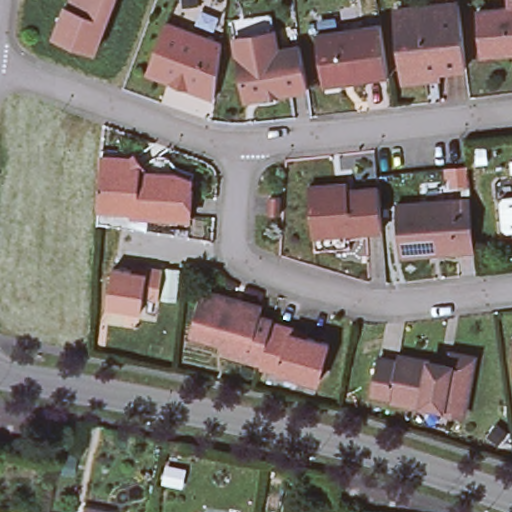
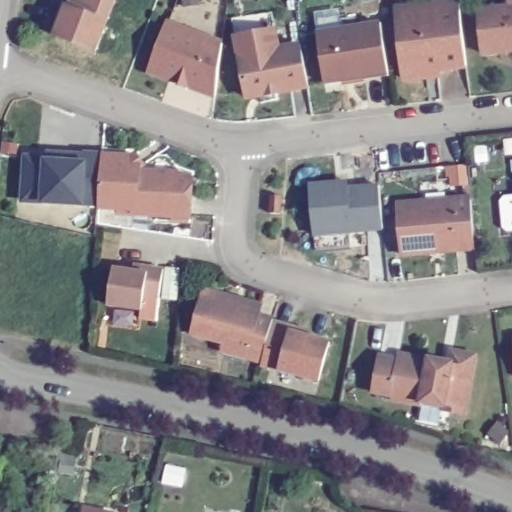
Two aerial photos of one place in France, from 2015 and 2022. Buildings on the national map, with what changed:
unchanged [(72,0),(74,0),(77,1),(77,0),(117,0),(115,5),(100,46),(60,31),(72,0)]
unchanged [(405,80),(397,10),(439,5),(438,0),(459,0),(459,3),(466,66),(437,70),(438,76),(427,77),(405,80)]
unchanged [(484,4),(512,1),(512,47),(488,49),(484,4)]
unchanged [(300,45),(308,86),(246,98),(235,36),(232,19),(271,11),(275,29),(278,49),(300,45)]
unchanged [(380,24),(381,23),(388,71),(387,71),(364,75),(364,77),(324,83),(316,33),(380,24)]
unchanged [(215,96),(190,87),(190,89),(189,89),(190,86),(184,85),(185,82),(177,80),(176,82),(170,80),(170,82),(168,81),(170,79),(150,72),(167,24),(222,44),(215,96)]
new [(98,205),(22,200),(25,156),(48,158),(48,160),(56,161),(57,154),(83,155),(83,154),(102,155),(98,205)]
unchanged [(134,209),(98,207),(99,203),(99,199),(102,155),(130,156),(140,169),(139,171),(176,174),(192,179),(191,196),(190,216),(175,216),(133,214),(134,209)]
unchanged [(310,197),(378,190),(379,190),(383,234),(382,234),(314,240),(310,197)]
unchanged [(271,195),(281,196),(280,214),(270,214),(271,195)]
unchanged [(470,198),(475,248),(400,254),(395,205),(470,198)]
unchanged [(146,272),(147,266),(163,269),(159,298),(144,296),(142,310),(107,305),(113,267),(146,272)]
unchanged [(250,366),(252,357),(198,342),(210,301),(265,316),(262,325),(278,330),(276,337),(266,371),(250,366)]
unchanged [(265,375),(266,371),(276,337),(334,352),(323,391),(265,375)]
unchanged [(441,414),(442,410),(431,408),(423,407),(422,410),(405,407),(406,403),(373,397),(380,361),(397,364),(398,358),(427,364),(431,365),(430,368),(436,369),(437,370),(438,370),(440,372),(440,373),(440,375),(448,376),(451,356),(475,360),(464,418),(441,414)]
unchanged [(103,512),(81,512),(82,508),(103,512)]

